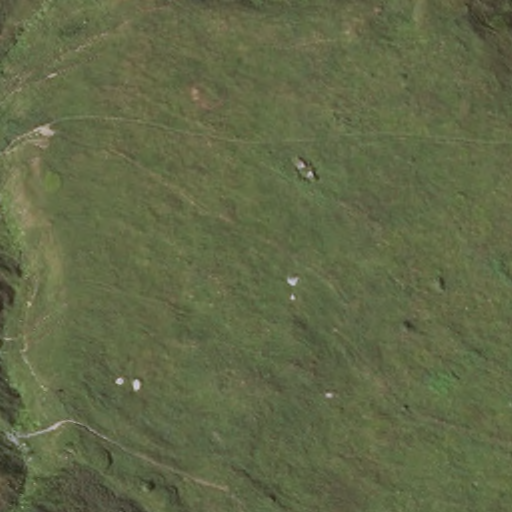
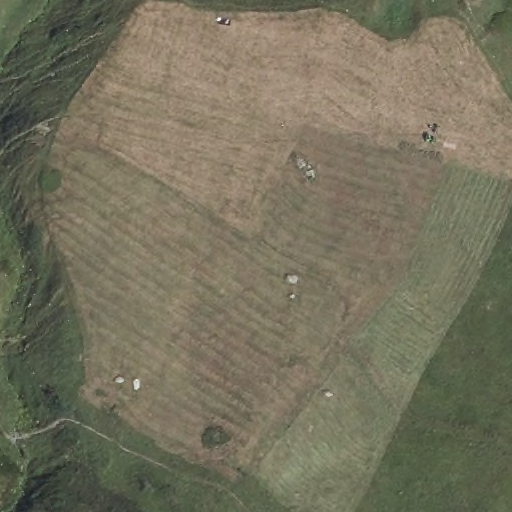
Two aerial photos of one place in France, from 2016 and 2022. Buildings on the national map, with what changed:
[]

